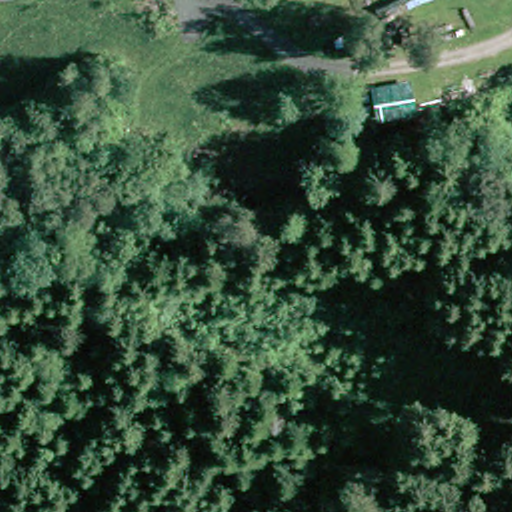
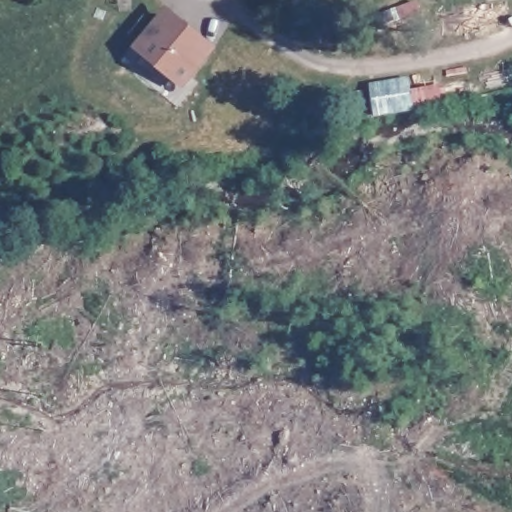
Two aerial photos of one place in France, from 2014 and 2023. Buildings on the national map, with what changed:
new [(218,47),(184,89),(133,48),(168,6),(218,47)]

